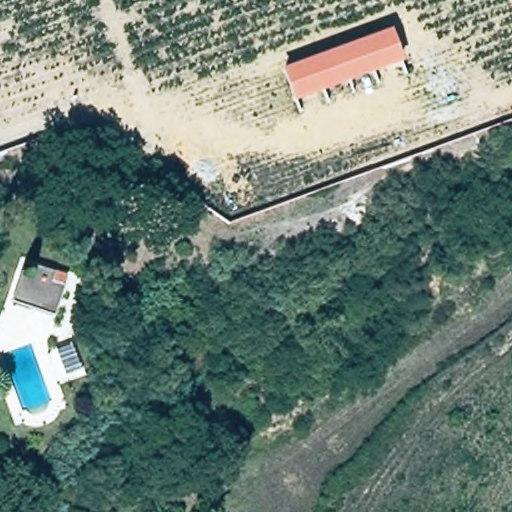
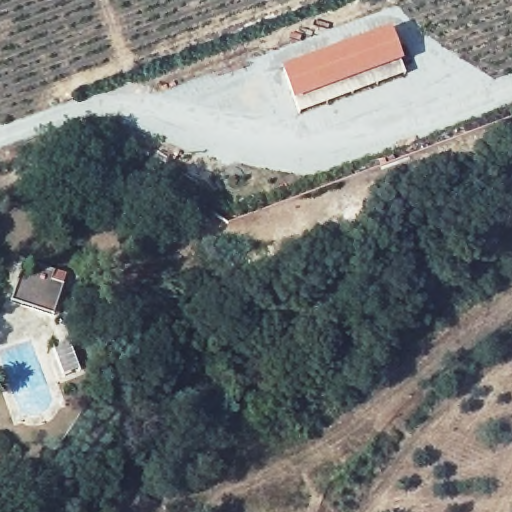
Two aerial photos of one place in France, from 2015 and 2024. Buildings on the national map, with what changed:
unchanged [(404,64),(293,104),(281,70),(391,29),(404,64)]
unchanged [(23,261),(64,276),(49,316),(10,302),(23,261)]

